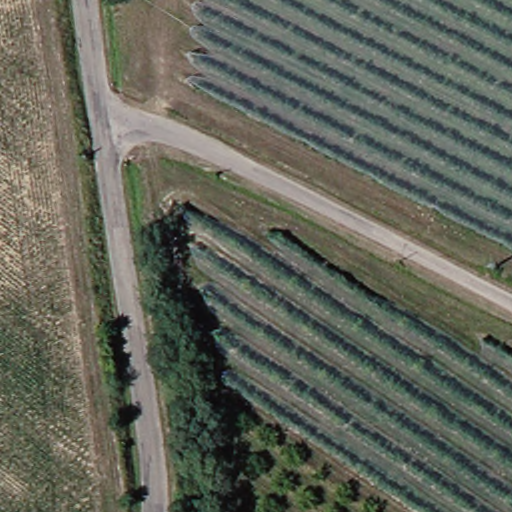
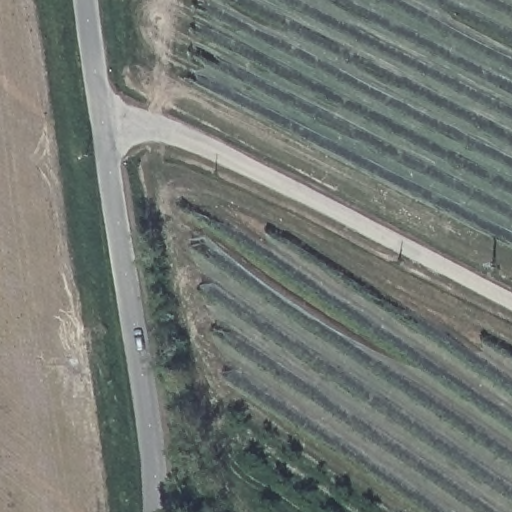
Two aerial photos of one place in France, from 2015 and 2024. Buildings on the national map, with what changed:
[]

